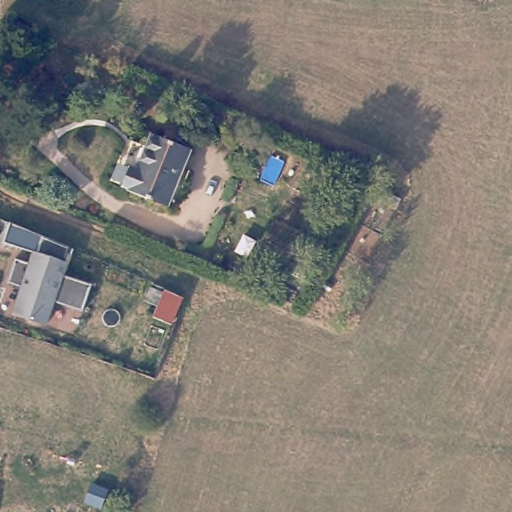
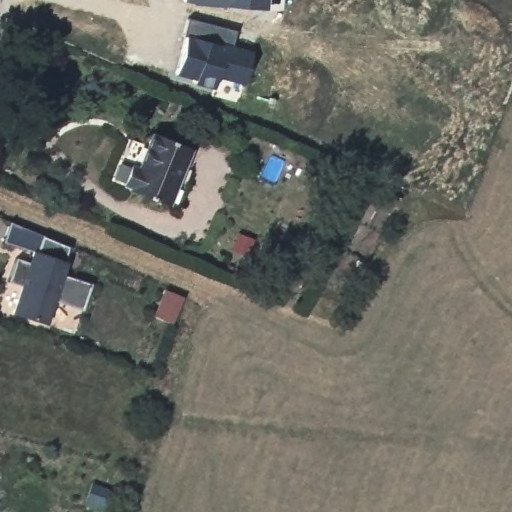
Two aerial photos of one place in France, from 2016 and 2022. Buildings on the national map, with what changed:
new [(190,0),(188,0),(266,0),(266,6),(190,0)]
new [(183,37),(180,37),(185,19),(232,31),(228,48),(249,54),(241,84),(215,77),(212,89),(192,84),(193,80),(174,75),(183,37)]
unchanged [(196,149),(176,206),(138,195),(140,189),(118,181),(127,152),(136,155),(138,146),(152,150),(157,135),(196,149)]
unchanged [(55,241),(71,247),(66,263),(59,261),(55,272),(93,285),(83,312),(60,304),(61,300),(52,297),(45,320),(48,321),(46,325),(14,315),(15,310),(19,311),(26,289),(8,282),(16,260),(30,264),(35,252),(37,253),(43,236),(55,241)]

